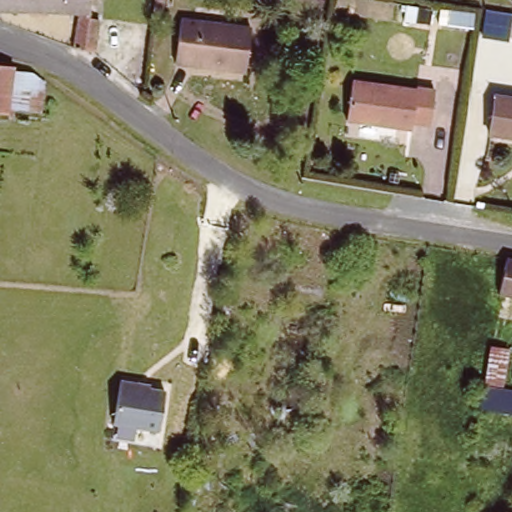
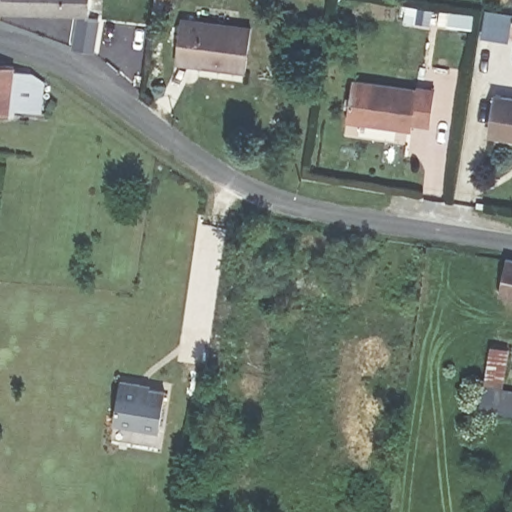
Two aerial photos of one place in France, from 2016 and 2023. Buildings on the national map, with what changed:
unchanged [(102,20),(100,60),(80,60),(80,20),(0,19),(0,0),(92,0),(92,20),(102,20)]
unchanged [(484,10),(512,14),(508,41),(480,39),(484,10)]
unchanged [(253,29),(247,69),(180,60),(186,20),(253,29)]
unchanged [(14,115),(0,114),(0,65),(19,66),(14,115)]
unchanged [(375,90),(380,89),(420,95),(422,92),(437,95),(433,130),(419,127),(418,135),(352,127),(358,87),(375,90)]
unchanged [(512,105),(512,143),(494,141),(500,103),(512,105)]
unchanged [(512,262),(512,295),(501,292),(508,261),(512,262)]
unchanged [(482,418),(485,397),(492,358),(509,361),(502,400),(512,402),(512,423),(482,418)]
unchanged [(150,380),(150,386),(165,388),(158,432),(112,424),(120,375),(150,380)]

